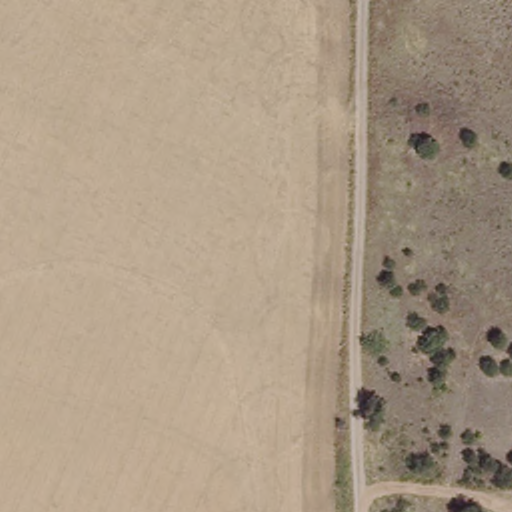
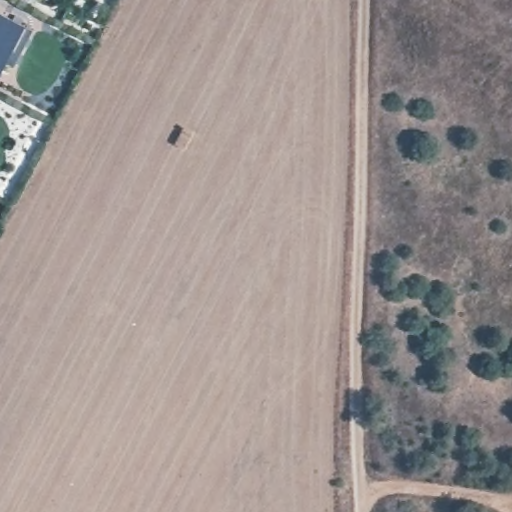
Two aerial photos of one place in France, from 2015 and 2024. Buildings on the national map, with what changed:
new [(25,25),(0,75),(0,14),(25,25)]

